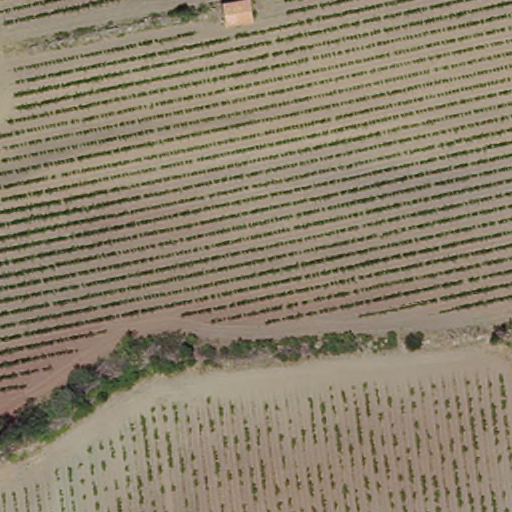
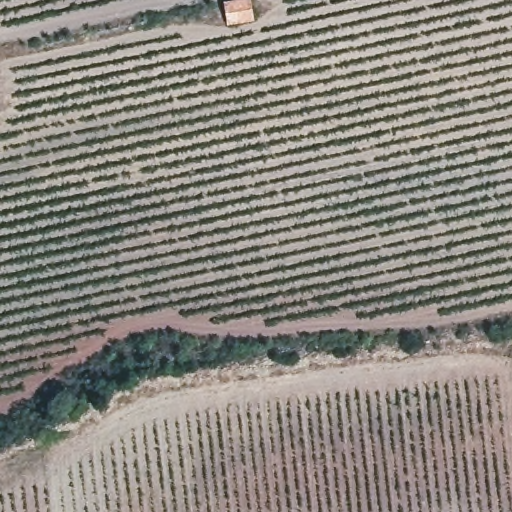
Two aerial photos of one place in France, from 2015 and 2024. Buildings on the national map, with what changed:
unchanged [(248,20),(222,22),(221,5),(220,0),(246,0),(248,20)]

